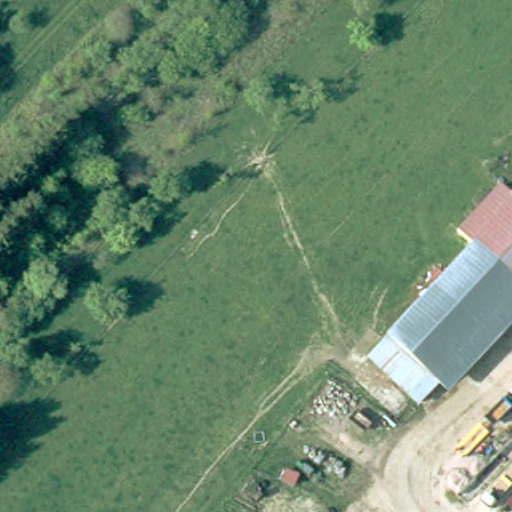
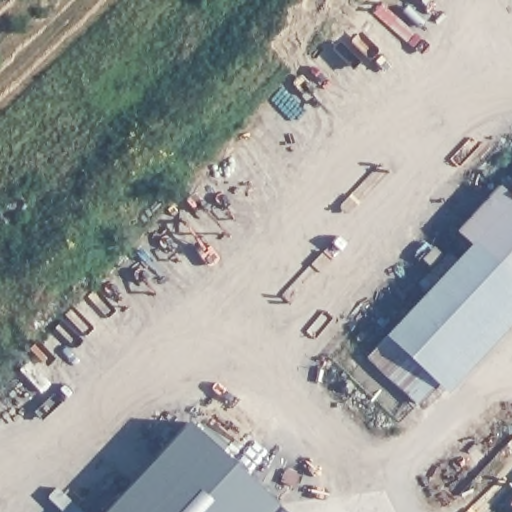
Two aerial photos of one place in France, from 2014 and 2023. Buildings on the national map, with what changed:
unchanged [(435,375),(416,395),(366,345),(477,237),(464,224),(506,182),(512,189),(512,321),(446,386),(435,375)]
new [(276,504),(269,512),(102,512),(185,421),(276,504)]
unchanged [(512,510),(508,506),(512,502),(512,510)]

